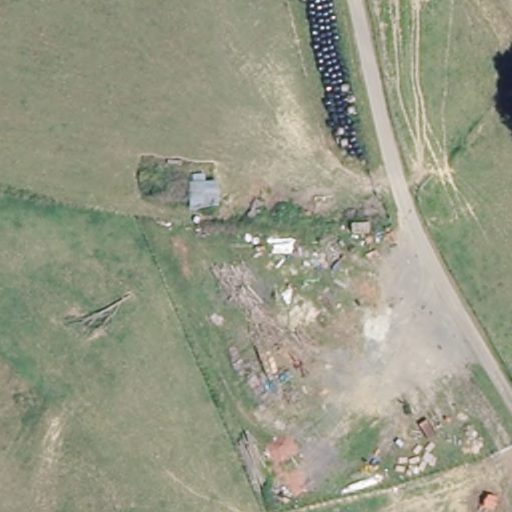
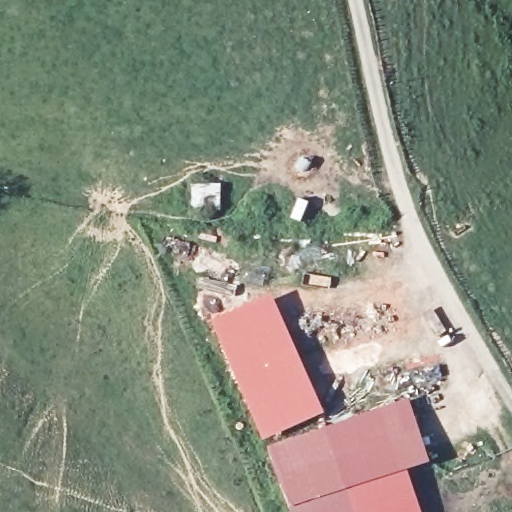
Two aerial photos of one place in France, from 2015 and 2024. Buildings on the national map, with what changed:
new [(272,292),(325,412),(263,440),(233,372),(211,319),(272,292)]
new [(429,460),(346,488),(354,512),(291,512),(288,505),(268,446),(409,398),(429,460)]
new [(406,468),(422,512),(354,512),(346,488),(406,468)]

